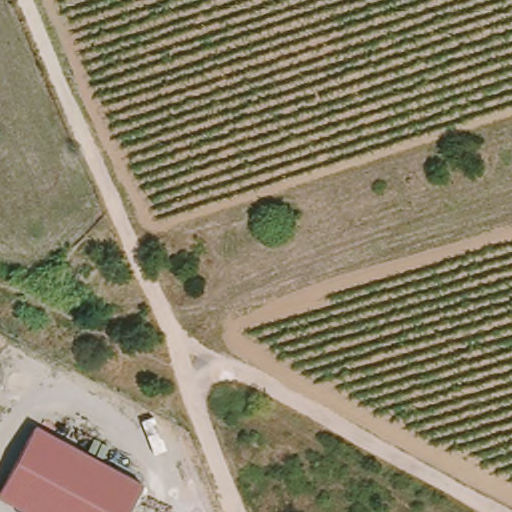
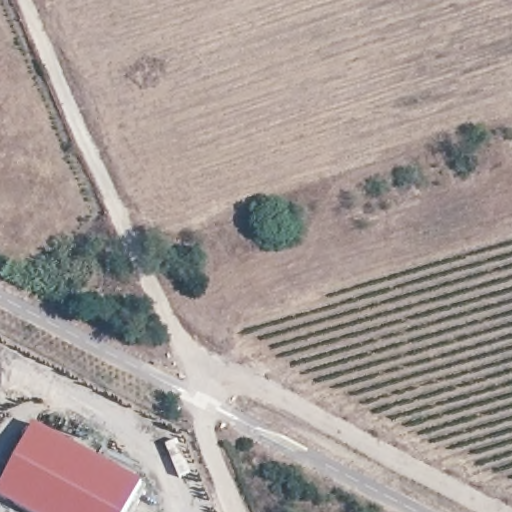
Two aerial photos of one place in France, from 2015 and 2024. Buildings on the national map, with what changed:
unchanged [(127,512),(18,512),(0,503),(0,494),(33,430),(141,486),(127,512)]

